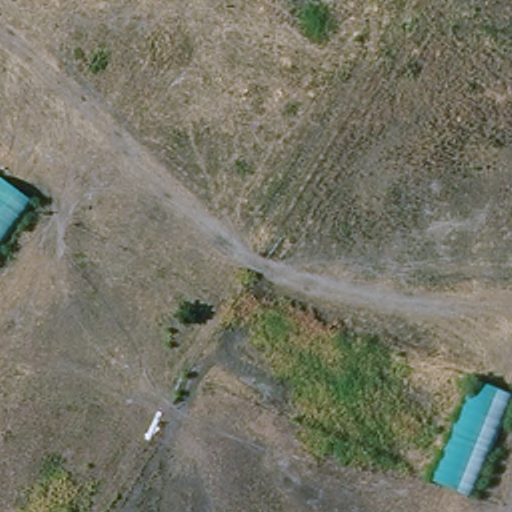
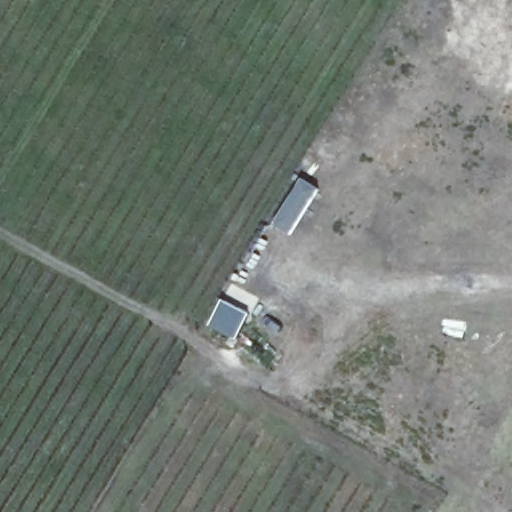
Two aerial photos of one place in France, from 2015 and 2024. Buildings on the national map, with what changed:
demolished [(0,248),(0,180),(35,203),(0,248)]
demolished [(474,382),(512,394),(512,404),(475,498),(431,481),(474,382)]

